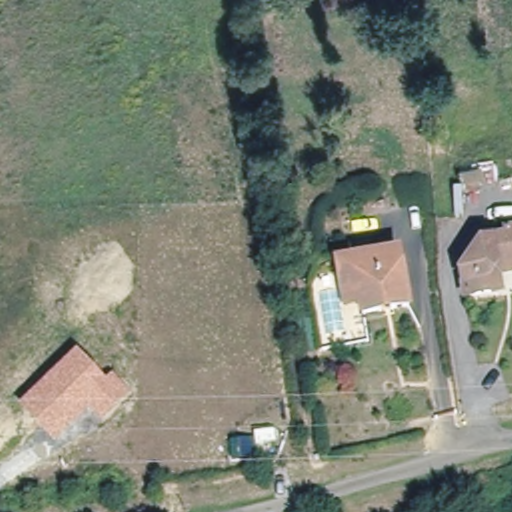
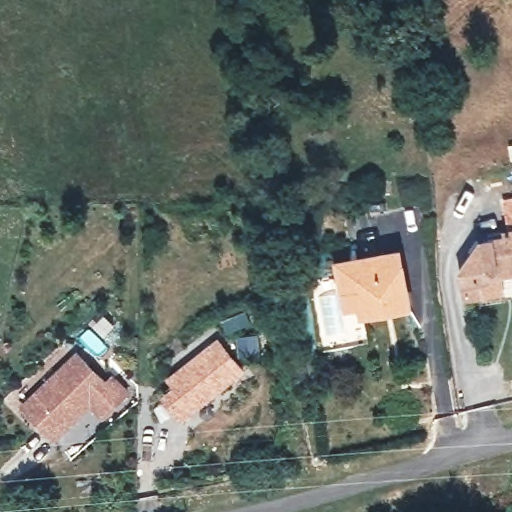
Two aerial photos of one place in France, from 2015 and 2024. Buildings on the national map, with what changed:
unchanged [(466,295),(458,268),(476,241),(501,235),(500,230),(512,227),(512,261),(503,263),(500,257),(492,261),(498,286),(488,289),(466,295)]
unchanged [(413,310),(364,320),(362,305),(346,307),(339,268),(354,266),(401,257),(413,310)]
new [(246,370),(182,417),(163,396),(175,385),(168,376),(220,336),(246,370)]
unchanged [(105,380),(112,373),(130,392),(103,418),(91,407),(55,442),(20,405),(77,350),(105,380)]

